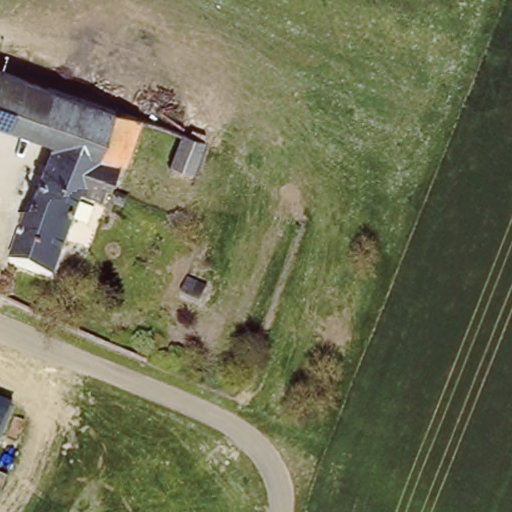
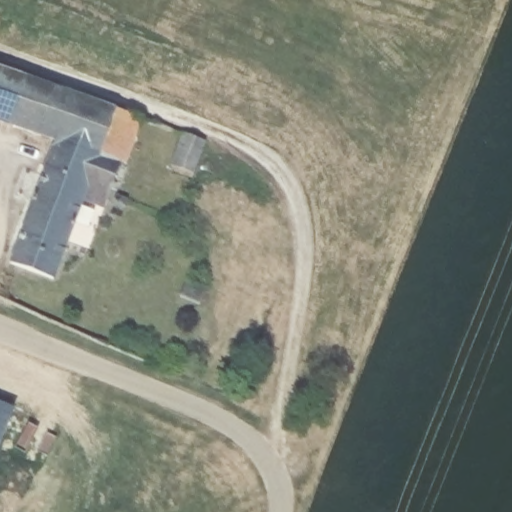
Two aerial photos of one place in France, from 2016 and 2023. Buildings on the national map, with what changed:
unchanged [(124,159),(118,157),(103,202),(83,195),(49,284),(6,268),(52,132),(0,114),(0,65),(139,114),(124,159)]
unchanged [(192,174),(173,166),(184,132),(205,140),(193,170),(192,174)]
unchanged [(39,309),(0,293),(0,286),(4,276),(45,293),(39,309)]
unchanged [(0,446),(0,397),(18,403),(0,446)]

